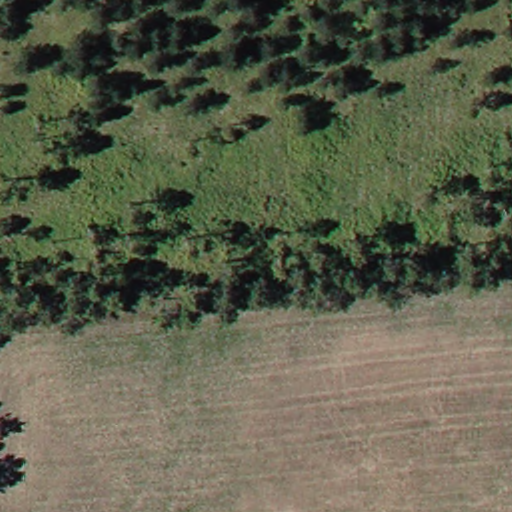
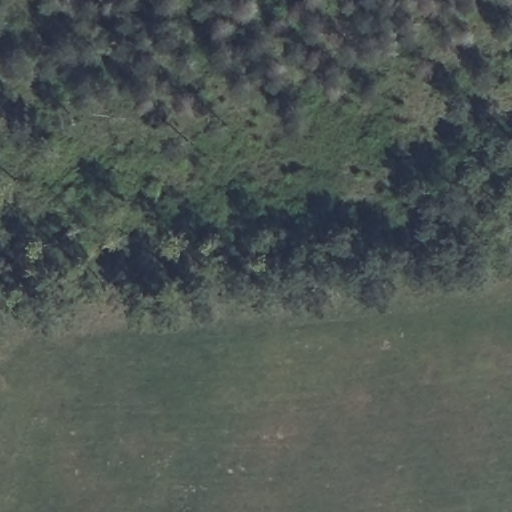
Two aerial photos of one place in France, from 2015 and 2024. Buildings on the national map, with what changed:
[]

